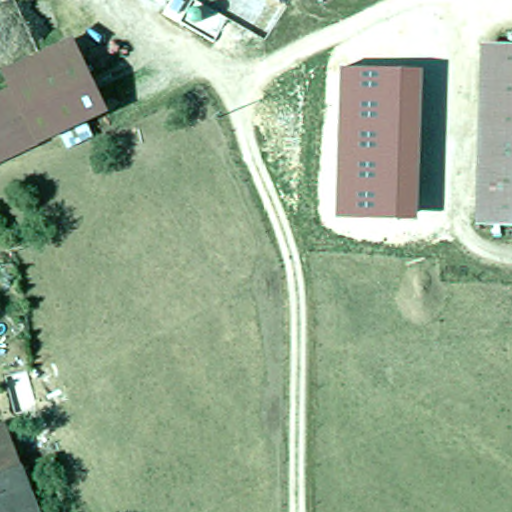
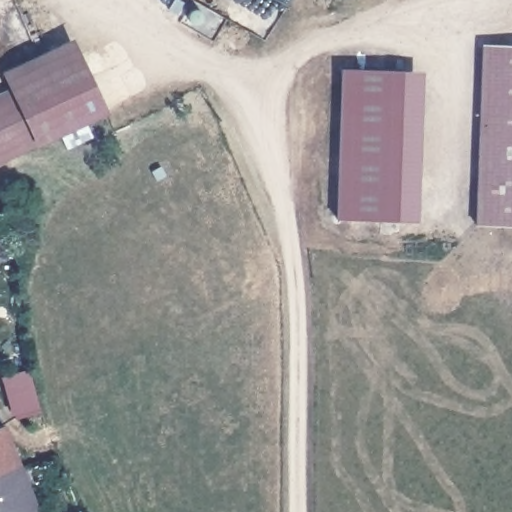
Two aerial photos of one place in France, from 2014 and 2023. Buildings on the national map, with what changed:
unchanged [(512,227),(473,225),(480,46),(512,47),(512,227)]
unchanged [(75,51),(101,106),(31,140),(5,85),(75,51)]
unchanged [(425,73),(420,225),(338,220),(345,69),(425,73)]
unchanged [(5,85),(31,140),(0,155),(0,88),(5,85)]
new [(42,411),(12,419),(1,376),(31,368),(42,411)]
unchanged [(14,453),(0,459),(0,419),(14,453)]
unchanged [(14,453),(37,512),(0,512),(0,459),(14,453)]

